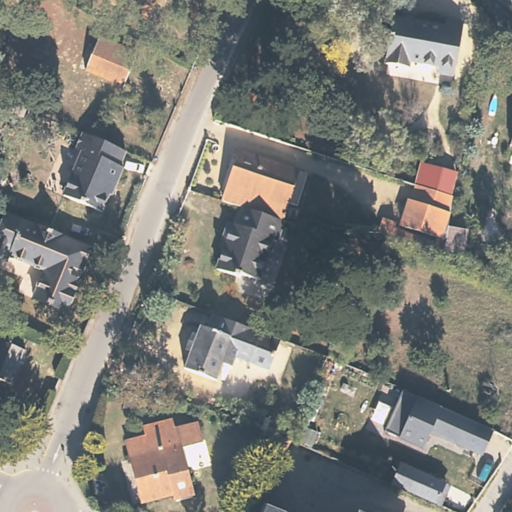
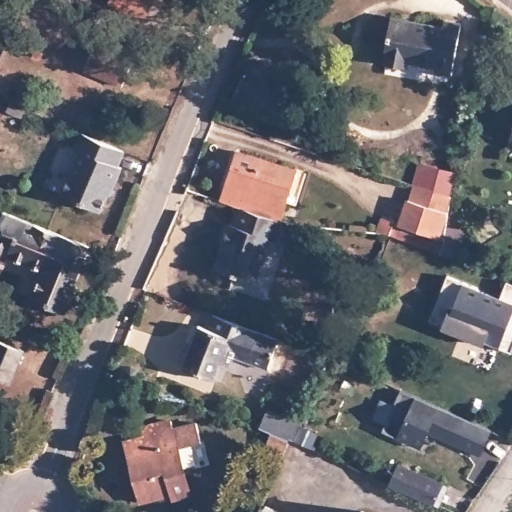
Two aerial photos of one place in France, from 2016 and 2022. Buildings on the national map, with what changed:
unchanged [(140,24),(106,8),(109,1),(106,0),(151,0),(140,24)]
unchanged [(440,72),(442,65),(411,59),(410,66),(390,62),(391,54),(388,54),(396,15),(448,25),(449,20),(465,23),(458,59),(455,75),(440,72)]
unchanged [(141,53),(128,84),(84,65),(86,60),(92,63),(104,37),(141,53)]
unchanged [(116,150),(110,165),(114,167),(103,191),(100,190),(90,210),(55,195),(73,152),(68,150),(75,133),(116,150)]
unchanged [(222,201),(240,151),(299,171),(281,221),(240,207),(222,201)]
unchanged [(445,239),(403,225),(411,199),(416,201),(417,197),(420,185),(453,195),(451,207),(445,239)]
unchanged [(281,221),(284,222),(276,245),(269,242),(254,280),(237,274),(235,277),(212,269),(229,224),(233,225),(240,207),(281,221)]
unchanged [(62,287),(71,291),(61,315),(27,302),(37,275),(3,261),(1,265),(0,265),(0,217),(16,223),(85,251),(78,268),(70,265),(67,272),(64,280),(62,287)]
new [(481,286),(481,288),(504,296),(510,279),(512,280),(512,349),(434,320),(450,275),(481,286)]
unchanged [(213,308),(281,334),(279,338),(275,347),(268,365),(235,352),(232,365),(222,361),(215,377),(182,365),(200,320),(207,322),(211,311),(213,308)]
unchanged [(31,348),(18,381),(0,375),(0,344),(2,337),(31,348)]
unchanged [(484,454),(430,431),(421,447),(386,430),(404,390),(494,430),(484,454)]
unchanged [(171,492),(142,500),(127,441),(144,436),(142,428),(172,421),(174,429),(196,423),(202,443),(191,445),(196,464),(184,467),(189,487),(191,493),(173,498),(171,492)]
unchanged [(291,448),(285,461),(266,454),(272,441),(291,448)]
unchanged [(445,484),(442,490),(446,491),(440,507),(390,487),(398,466),(445,484)]

